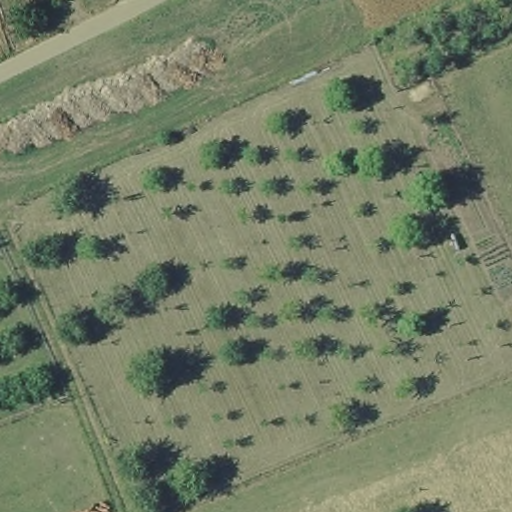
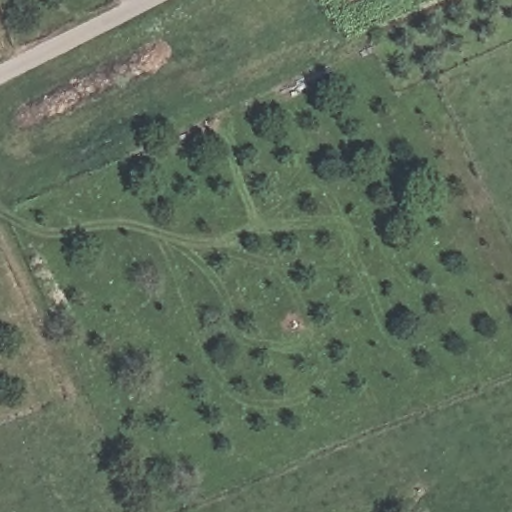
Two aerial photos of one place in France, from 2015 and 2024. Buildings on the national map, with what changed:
[]

